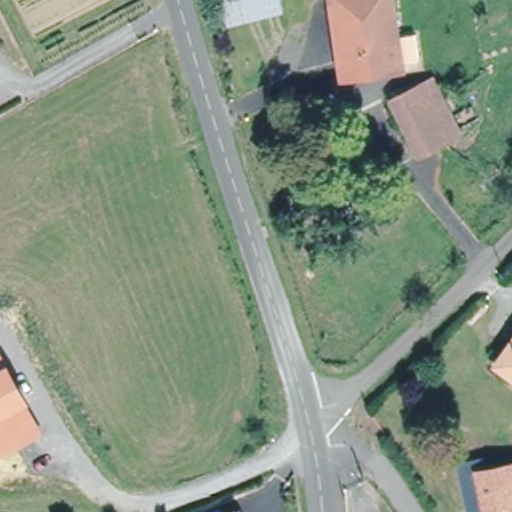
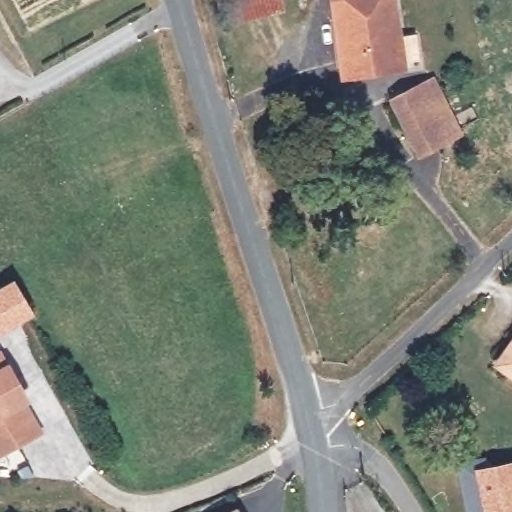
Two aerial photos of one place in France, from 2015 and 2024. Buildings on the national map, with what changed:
unchanged [(282,11),(225,25),(218,0),(279,0),(282,11)]
unchanged [(392,67),(393,72),(333,80),(323,0),(384,0),(390,42),(407,39),(410,65),(392,67)]
unchanged [(392,101),(424,85),(435,79),(461,133),(451,138),(419,155),(392,101)]
new [(14,278),(35,316),(0,335),(0,286),(14,278)]
unchanged [(0,347),(45,435),(0,458),(0,347)]
unchanged [(512,350),(512,378),(499,368),(512,350)]
unchanged [(493,465),(512,460),(512,512),(484,512),(484,510),(472,512),(467,512),(456,461),(490,453),(493,465)]

